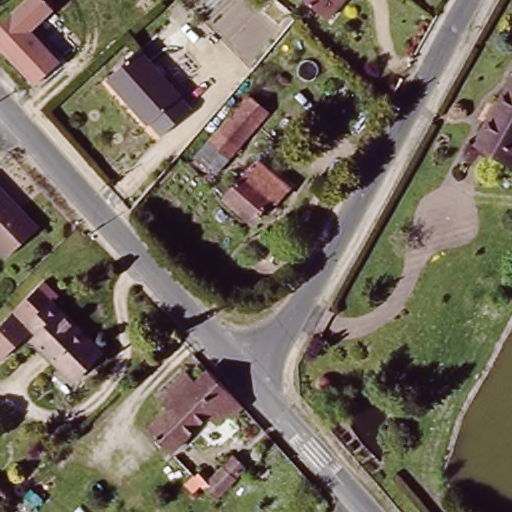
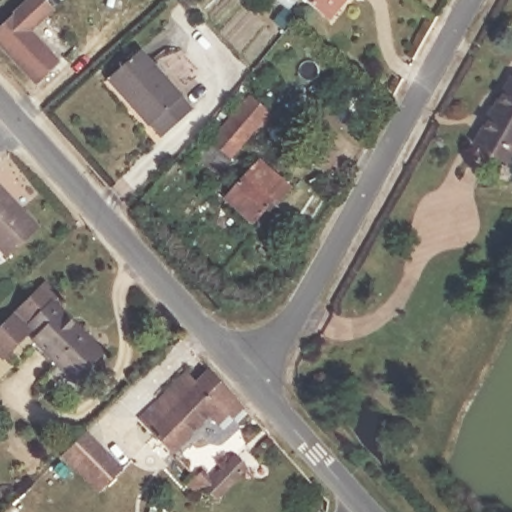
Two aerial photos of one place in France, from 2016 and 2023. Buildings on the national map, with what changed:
unchanged [(32,29),(62,62),(35,87),(0,48),(0,25),(26,0),(47,0),(54,8),(32,29)]
unchanged [(335,14),(317,0),(346,0),(335,14)]
unchanged [(152,125),(150,127),(127,100),(109,81),(112,78),(141,52),(182,99),(192,112),(163,138),(152,125)]
unchanged [(503,165),(490,158),(472,148),(510,78),(512,79),(512,170),(503,165)]
unchanged [(193,159),(207,143),(246,98),(266,114),(226,160),(212,176),(193,159)]
unchanged [(226,200),(227,199),(245,177),(249,175),(259,162),(290,190),(270,214),(267,210),(254,225),(226,200)]
unchanged [(5,259),(0,253),(0,198),(0,192),(4,197),(35,230),(5,259)]
unchanged [(35,326),(3,360),(0,357),(0,326),(40,284),(53,298),(30,322),(35,326)]
unchanged [(72,317),(105,349),(76,378),(45,346),(35,337),(40,331),(30,322),(53,298),(72,317)]
unchanged [(147,433),(167,413),(157,401),(185,375),(185,376),(195,369),(201,377),(207,373),(228,395),(237,404),(215,426),(207,417),(168,456),(147,433)]
new [(98,494),(60,456),(87,432),(123,469),(98,494)]
unchanged [(199,468),(209,478),(222,465),(232,477),(212,496),(192,475),(199,468)]
demolished [(150,512),(121,512),(139,490),(156,504),(150,512)]

